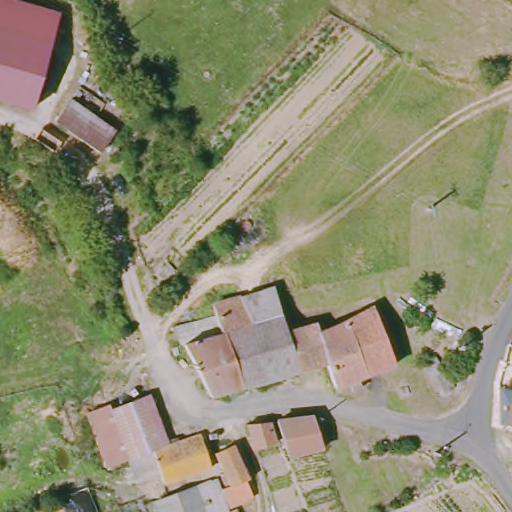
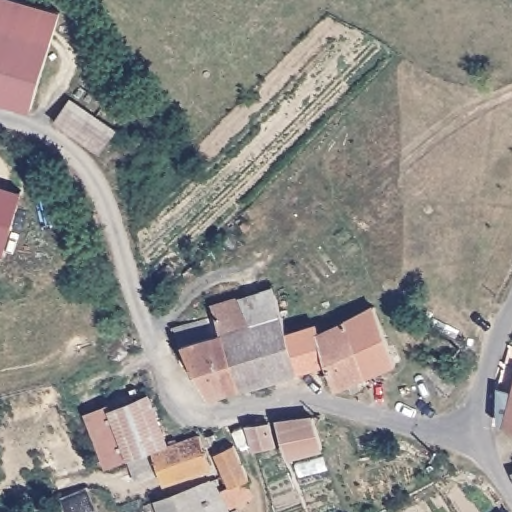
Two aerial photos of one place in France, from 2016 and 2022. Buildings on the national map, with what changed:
unchanged [(53,48),(34,115),(0,105),(0,0),(3,0),(61,17),(53,48)]
unchanged [(49,124),(65,99),(111,126),(94,153),(49,124)]
new [(5,253),(0,252),(0,184),(23,191),(5,253)]
unchanged [(175,324),(219,314),(216,302),(243,294),(273,286),(280,315),(287,330),(298,369),(239,384),(207,389),(194,338),(175,324)]
unchanged [(287,330),(311,326),(314,336),(368,309),(390,366),(339,388),(327,362),(298,369),(287,330)]
unchanged [(510,391),(512,384),(512,391),(510,391)]
unchanged [(512,391),(512,427),(500,424),(510,391),(512,391)]
unchanged [(114,430),(109,408),(148,395),(163,443),(148,447),(125,454),(114,430)]
unchanged [(321,449),(291,458),(283,425),(313,415),(321,449)]
unchanged [(270,441),(253,446),(248,427),(264,423),(270,441)]
unchanged [(125,454),(133,481),(111,489),(95,435),(114,430),(125,454)]
unchanged [(125,454),(148,447),(150,452),(194,437),(205,470),(162,484),(157,473),(133,481),(125,454)]
unchanged [(217,488),(226,487),(213,452),(233,445),(244,479),(240,480),(245,498),(223,506),(217,488)]
unchanged [(172,512),(165,491),(212,476),(217,488),(223,506),(225,512),(172,512)]

